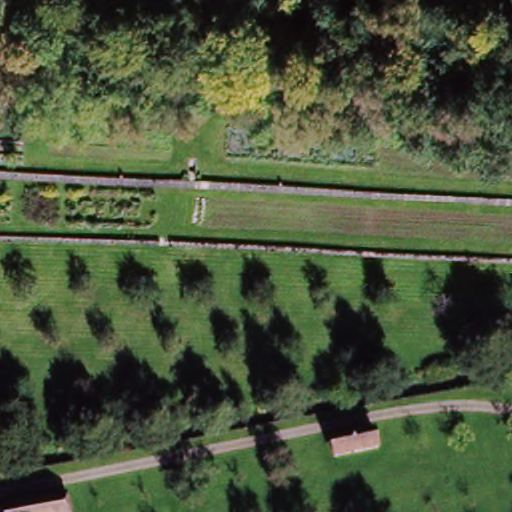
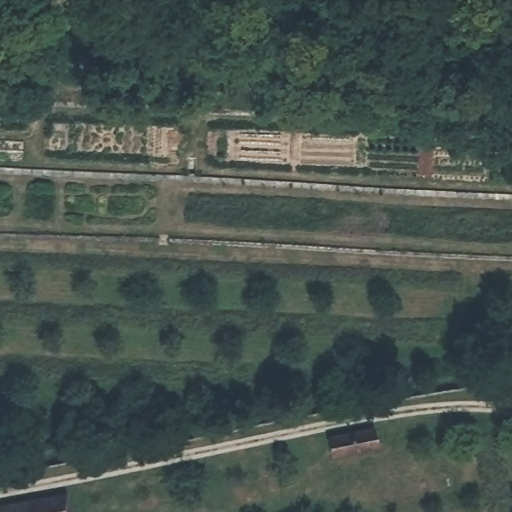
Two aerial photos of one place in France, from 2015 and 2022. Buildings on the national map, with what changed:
unchanged [(20,123),(0,122),(0,105),(22,106),(20,123)]
unchanged [(340,457),(335,440),(377,431),(381,448),(340,457)]
unchanged [(0,512),(0,508),(70,490),(76,512),(0,512)]

